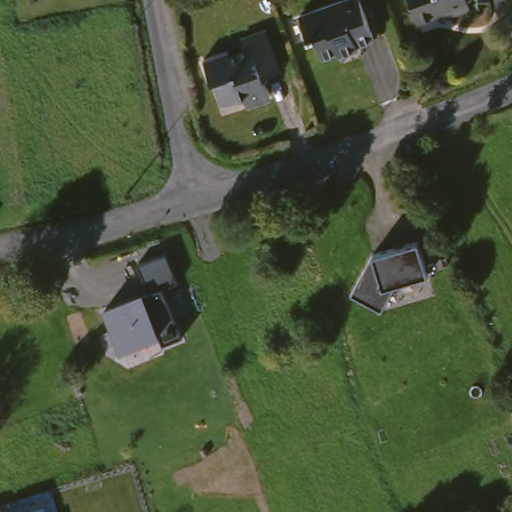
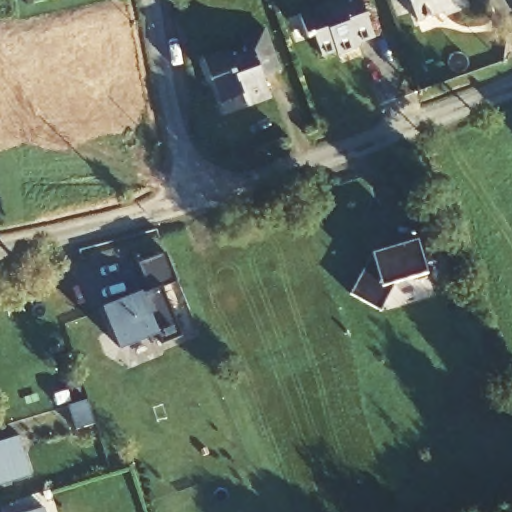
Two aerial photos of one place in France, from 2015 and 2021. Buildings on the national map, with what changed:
unchanged [(344,0),(346,6),(363,0),(375,39),(356,45),(358,52),(345,57),(342,51),(327,57),(321,40),(312,43),(302,13),(341,0),(344,0)]
unchanged [(449,18),(444,5),(438,7),(442,17),(422,24),(415,0),(470,0),(473,11),(449,18)]
unchanged [(261,71),(271,97),(248,106),(245,95),(227,100),(219,78),(214,80),(205,55),(228,47),(232,56),(250,50),(246,34),(268,27),(282,65),(261,71)]
unchanged [(372,249),(417,236),(427,271),(395,280),(383,298),(378,306),(369,301),(348,288),(372,249)]
unchanged [(144,291),(151,290),(140,263),(166,253),(177,282),(164,286),(184,335),(162,343),(160,334),(121,350),(104,307),(144,291)]
new [(88,400),(96,424),(77,430),(69,406),(88,400)]
new [(32,475),(0,485),(0,441),(19,435),(32,475)]
unchanged [(45,508),(46,512),(32,512),(45,508)]

